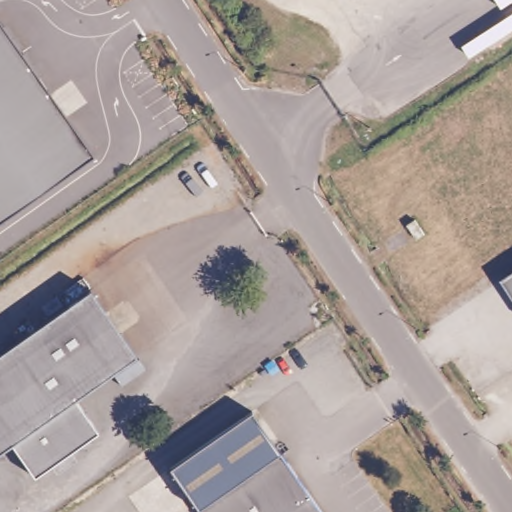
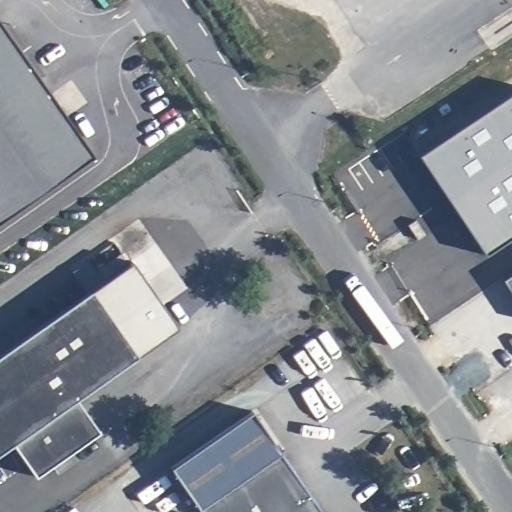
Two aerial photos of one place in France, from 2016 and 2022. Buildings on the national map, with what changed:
unchanged [(95,157),(0,222),(0,16),(95,157)]
new [(512,235),(483,254),(415,155),(512,91),(512,235)]
demolished [(400,213),(409,226),(401,231),(392,218),(400,213)]
unchanged [(419,223),(428,236),(420,241),(411,228),(419,223)]
unchanged [(134,267),(180,334),(139,362),(93,295),(134,267)]
unchanged [(512,267),(512,293),(500,275),(512,267)]
unchanged [(6,353),(46,327),(93,295),(139,362),(104,385),(76,404),(99,437),(97,439),(35,480),(13,447),(0,456),(0,358),(6,353)]
unchanged [(175,465),(222,433),(250,414),(317,512),(195,512),(190,506),(166,471),(175,465)]

